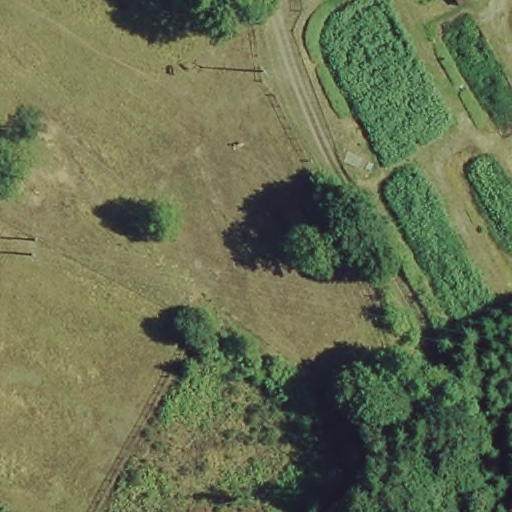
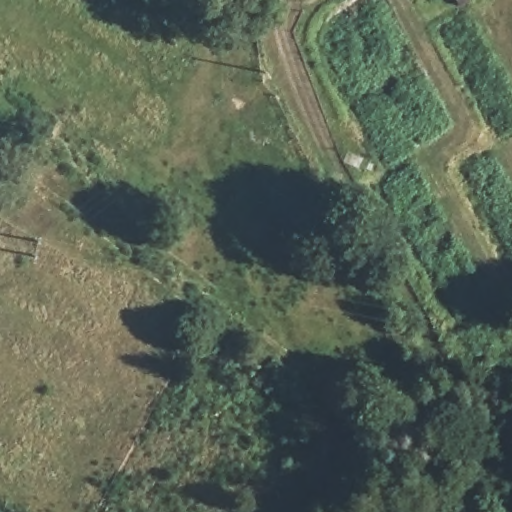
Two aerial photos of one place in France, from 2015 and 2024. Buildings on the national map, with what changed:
[]

